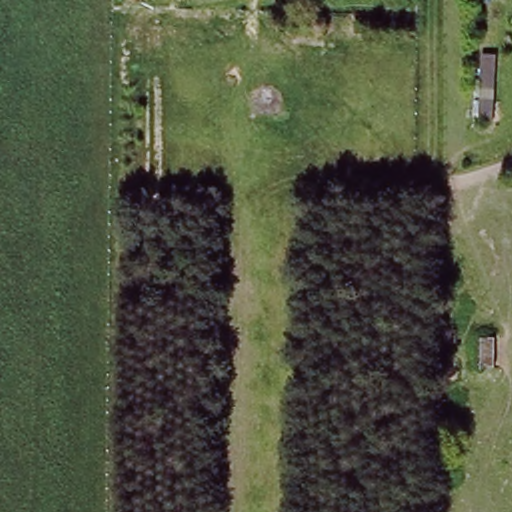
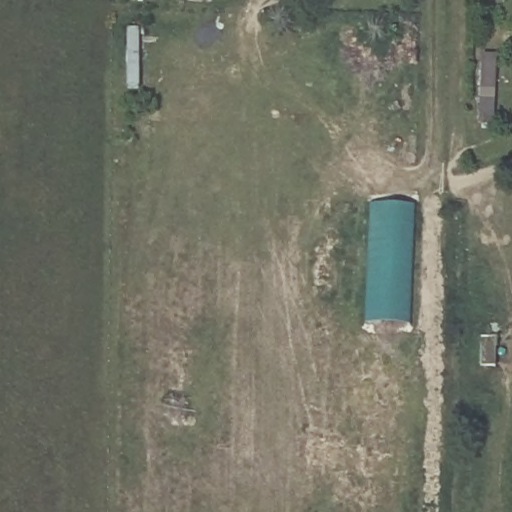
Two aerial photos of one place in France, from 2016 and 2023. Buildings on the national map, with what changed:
new [(128,29),(141,29),(141,89),(128,89),(128,29)]
unchanged [(493,51),(493,114),(480,114),(483,49),(493,51)]
new [(369,203),(416,205),(410,325),(364,323),(369,203)]

